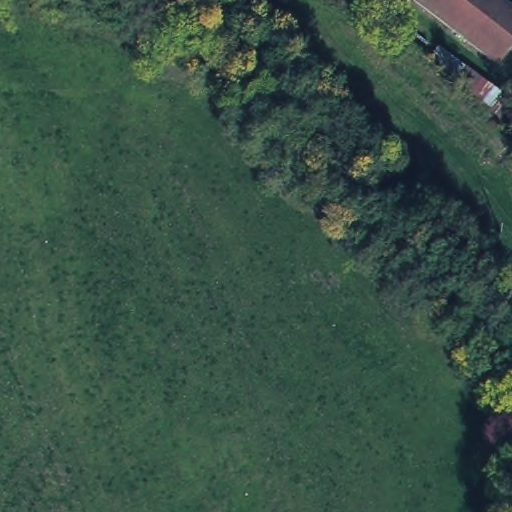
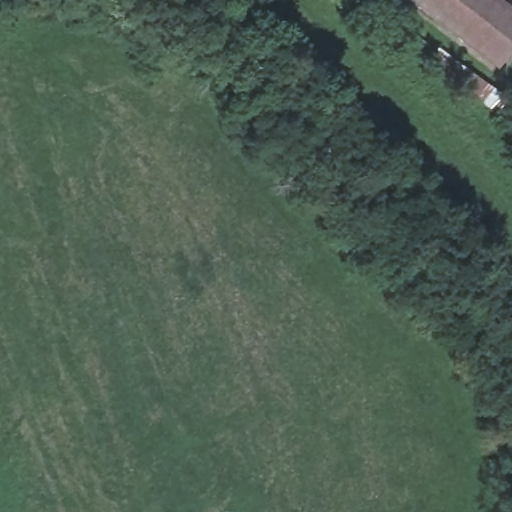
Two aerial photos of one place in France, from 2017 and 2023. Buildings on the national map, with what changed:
unchanged [(422,0),(504,0),(512,7),(512,43),(500,60),(422,0)]

